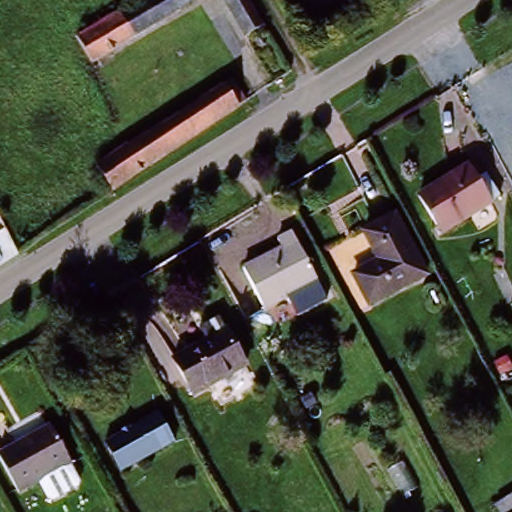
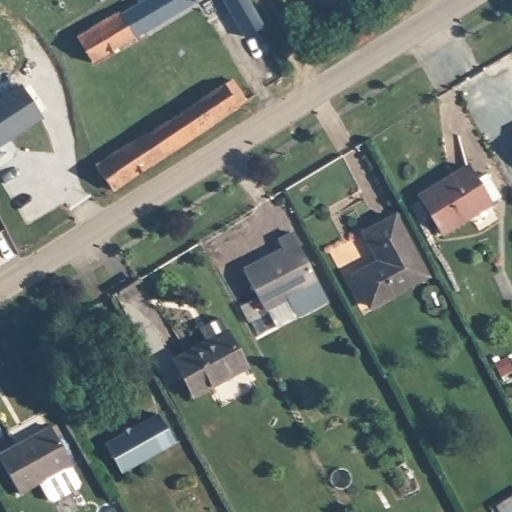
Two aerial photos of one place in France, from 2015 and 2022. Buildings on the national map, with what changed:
unchanged [(109,24),(148,0),(189,0),(118,40),(109,24)]
unchanged [(245,38),(224,0),(249,0),(264,28),(245,38)]
unchanged [(233,72),(248,94),(117,184),(101,160),(233,72)]
new [(44,114),(0,145),(0,97),(21,82),(44,114)]
unchanged [(492,173),(505,198),(444,230),(425,196),(474,170),(479,179),(492,173)]
unchanged [(384,252),(370,225),(397,211),(427,267),(374,295),(358,266),(384,252)]
unchanged [(265,306),(243,267),(260,256),(267,259),(287,250),(281,237),(293,231),(318,278),(265,306)]
unchanged [(205,349),(197,333),(218,322),(242,369),(192,395),(175,363),(205,349)]
unchanged [(159,416),(172,440),(122,467),(109,444),(159,416)]
unchanged [(16,483),(0,455),(0,448),(47,422),(65,455),(77,475),(75,481),(52,495),(45,492),(35,474),(16,483)]
unchanged [(506,495),(512,492),(512,507),(503,512),(495,512),(490,504),(506,495)]

